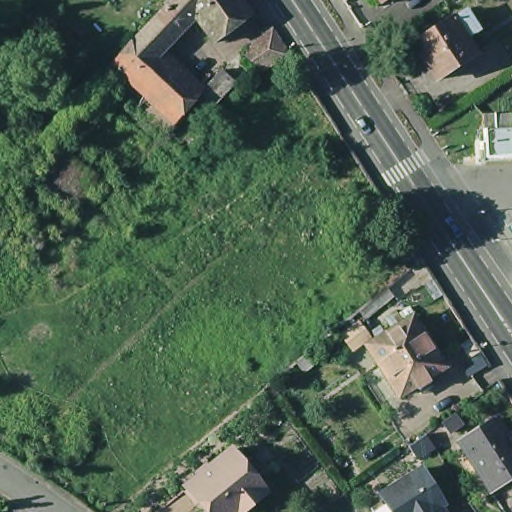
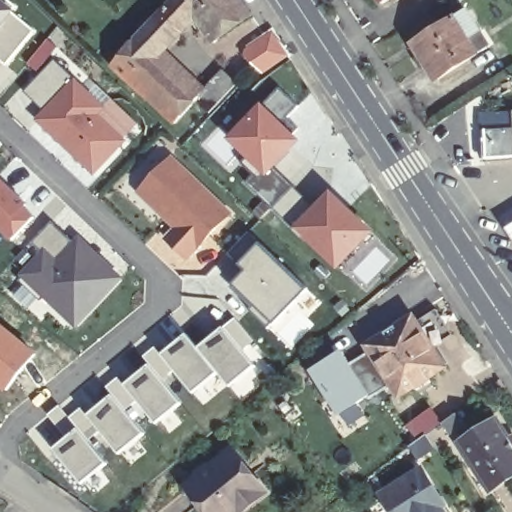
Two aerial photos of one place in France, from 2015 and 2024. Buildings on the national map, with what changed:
new [(10,11),(35,29),(11,64),(0,54),(0,0),(10,0),(16,6),(10,11)]
unchanged [(174,0),(235,0),(248,18),(211,45),(193,20),(156,61),(134,41),(173,1),(174,0)]
unchanged [(379,0),(390,0),(382,5),(379,0)]
unchanged [(405,0),(403,1),(402,0),(405,0)]
unchanged [(470,54),(471,55),(432,80),(409,45),(448,20),(459,12),(466,8),(472,16),(466,21),(473,32),(482,46),(470,54)]
unchanged [(291,55),(266,73),(260,63),(259,64),(253,53),(254,46),(274,30),(291,55)]
unchanged [(206,116),(193,104),(172,126),(143,99),(111,67),(134,41),(156,61),(196,98),(221,72),(234,86),(229,91),(206,116)]
new [(103,108),(97,115),(121,138),(90,172),(36,121),(43,109),(24,91),(52,63),(103,108)]
demolished [(40,146),(108,71),(121,84),(80,129),(81,130),(70,142),(68,141),(52,158),(40,146)]
new [(278,86),(299,106),(284,121),(303,140),(265,178),(226,138),(261,101),(278,86)]
unchanged [(487,161),(486,131),(485,117),(512,116),(512,159),(487,161)]
demolished [(68,141),(70,142),(81,130),(124,172),(98,200),(52,158),(68,141)]
new [(225,213),(183,254),(162,237),(173,222),(140,188),(171,156),(225,213)]
new [(0,231),(0,175),(33,202),(3,234),(0,231)]
demolished [(68,213),(55,229),(14,194),(28,178),(68,213)]
new [(329,188),(374,232),(336,270),(291,225),(329,188)]
new [(64,239),(73,230),(117,277),(72,327),(15,276),(38,250),(28,242),(49,219),(64,239)]
unchanged [(506,230),(512,226),(512,240),(506,230)]
new [(298,285),(261,324),(223,285),(238,270),(222,253),(244,234),(298,285)]
unchanged [(446,369),(429,380),(433,385),(420,393),(417,388),(402,398),(369,348),(413,319),(446,369)]
new [(4,393),(0,389),(0,320),(38,354),(4,393)]
new [(251,364),(226,386),(213,369),(188,392),(153,350),(181,330),(191,347),(222,327),(251,364)]
new [(389,379),(331,417),(306,373),(335,352),(349,367),(369,348),(389,379)]
demolished [(319,360),(305,372),(299,364),(313,353),(319,360)]
new [(176,406),(154,421),(120,383),(144,366),(176,406)]
new [(140,429),(114,454),(84,415),(112,393),(140,429)]
new [(427,435),(433,446),(416,463),(403,444),(413,437),(406,424),(431,403),(444,417),(427,435)]
unchanged [(456,415),(463,425),(451,434),(443,424),(456,415)]
unchanged [(486,484),(459,442),(496,418),(512,443),(512,477),(509,479),(491,491),(486,484)]
new [(104,461),(72,486),(44,451),(70,426),(104,461)]
unchanged [(188,489),(233,451),(268,494),(246,512),(207,512),(188,489)]
unchanged [(383,500),(424,474),(443,503),(437,506),(441,512),(390,512),(383,500)]

